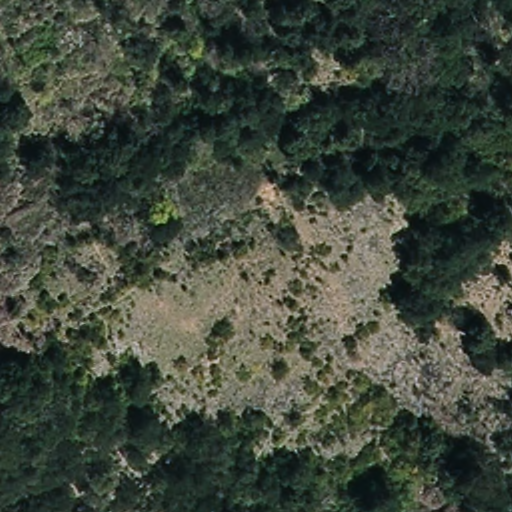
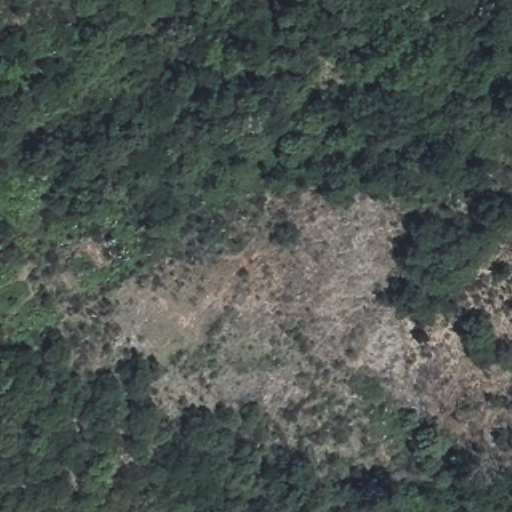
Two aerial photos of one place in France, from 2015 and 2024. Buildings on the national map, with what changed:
[]

